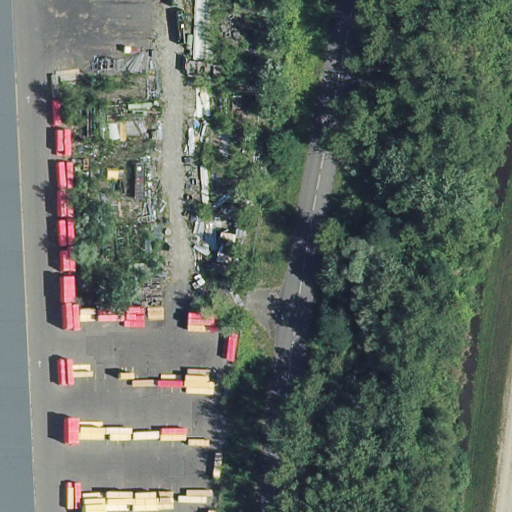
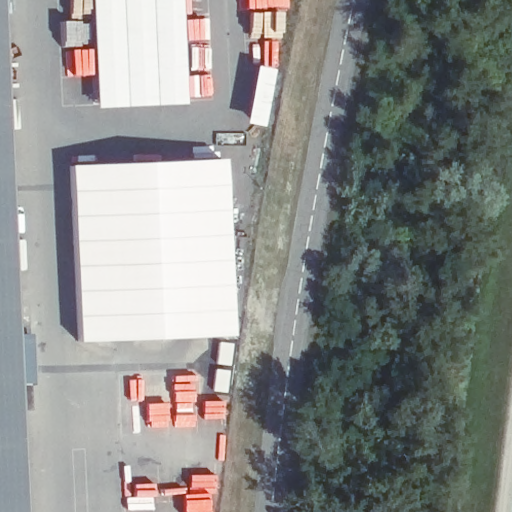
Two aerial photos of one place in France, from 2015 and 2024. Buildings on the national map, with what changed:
unchanged [(11,0),(27,512),(0,512),(0,0),(11,0)]
new [(95,109),(91,0),(179,0),(184,105),(95,109)]
new [(230,337),(77,342),(68,166),(222,160),(230,337)]

